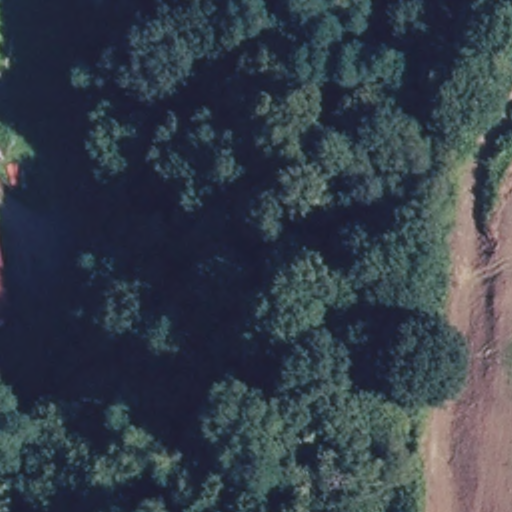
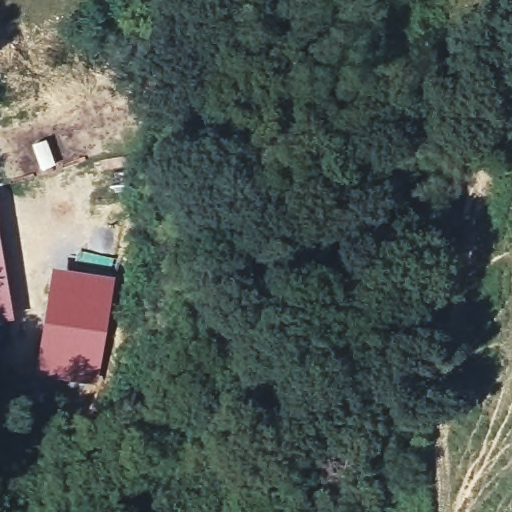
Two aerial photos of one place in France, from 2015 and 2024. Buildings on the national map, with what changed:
new [(53,267),(115,276),(97,386),(33,374),(53,267)]
unchanged [(0,323),(0,310),(3,323),(0,323)]

